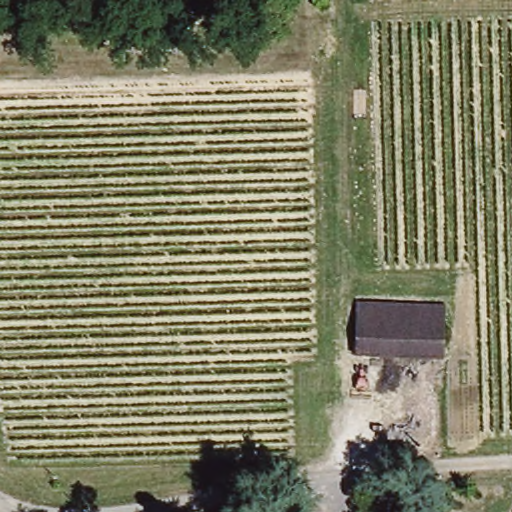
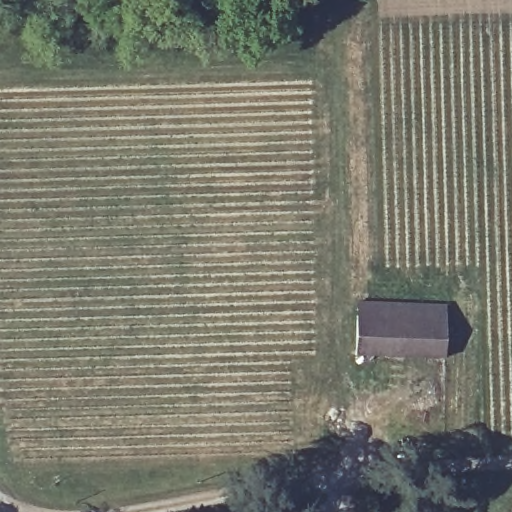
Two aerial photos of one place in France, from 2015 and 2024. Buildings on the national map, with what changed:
unchanged [(355,304),(440,303),(440,352),(355,353),(355,304)]

